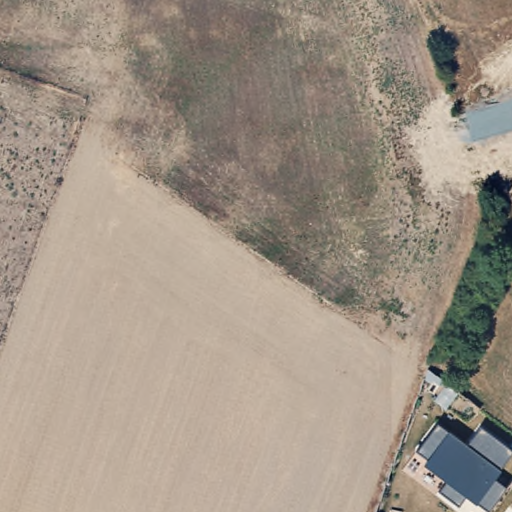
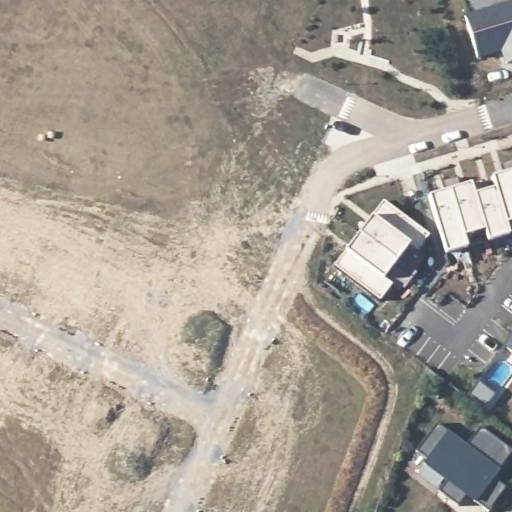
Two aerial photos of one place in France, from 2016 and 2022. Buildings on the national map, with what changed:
new [(512,61),(503,64),(500,52),(477,59),(463,14),(512,0),(512,61)]
new [(428,196),(470,184),(473,194),(495,188),(491,177),(512,171),(512,221),(505,223),(508,234),(487,240),(483,230),(462,236),(466,247),(445,253),(428,196)]
new [(379,301),(333,267),(345,251),(371,216),(382,200),(428,235),(416,252),(407,246),(385,278),(392,283),(379,301)]
unchanged [(512,334),(512,354),(502,347),(512,334)]
unchanged [(458,504),(440,491),(447,482),(423,465),(428,458),(418,451),(439,425),(467,446),(481,427),(512,450),(512,451),(493,480),(506,489),(487,510),(465,495),(458,504)]

